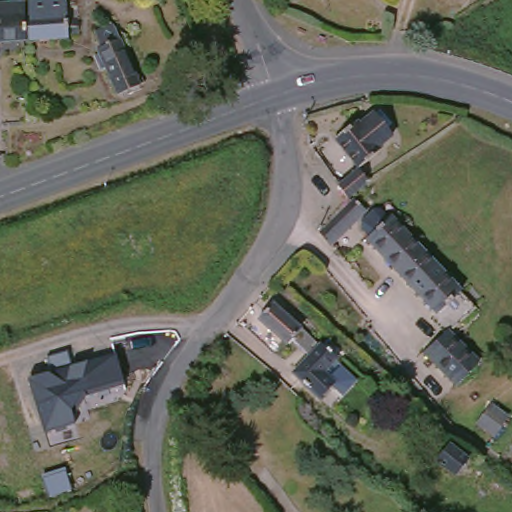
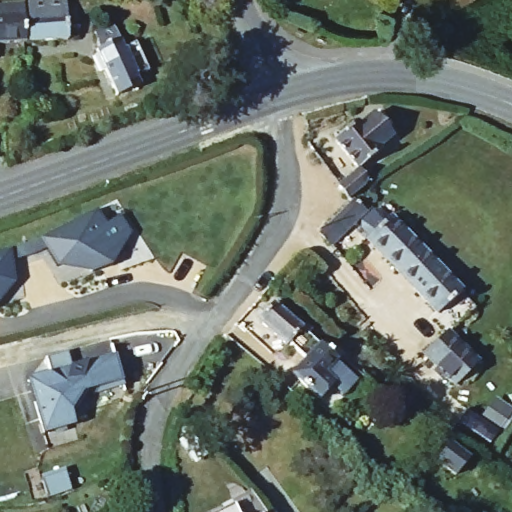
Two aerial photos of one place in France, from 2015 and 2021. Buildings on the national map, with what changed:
unchanged [(17,0),(18,5),(9,5),(9,0),(17,0)]
unchanged [(23,5),(59,5),(59,24),(61,24),(62,30),(72,30),(73,44),(63,44),(63,50),(20,52),(19,26),(23,25),(23,5)]
unchanged [(18,11),(19,26),(20,52),(0,53),(0,12),(18,11)]
unchanged [(108,32),(132,86),(137,84),(140,90),(111,101),(92,57),(89,40),(108,32)]
unchanged [(359,127),(372,116),(391,138),(377,150),(381,155),(358,174),(334,143),(356,124),(359,127)]
unchanged [(327,167),(321,158),(330,149),(338,158),(327,167)]
unchanged [(362,192),(349,203),(339,191),(358,174),(364,181),(362,192)]
unchanged [(361,214),(366,216),(331,251),(319,237),(354,205),(361,214)]
new [(16,247),(42,237),(99,210),(106,222),(121,215),(131,232),(111,263),(97,272),(60,266),(48,248),(18,260),(20,275),(4,305),(0,306),(0,251),(16,247)]
unchanged [(431,323),(359,244),(375,229),(384,221),(420,260),(423,263),(456,300),(431,323)]
unchanged [(314,353),(307,361),(295,349),(288,357),(258,327),(273,311),(314,353)]
unchanged [(472,370),(449,392),(419,362),(443,340),(472,370)]
unchanged [(124,382),(80,395),(71,409),(74,424),(44,432),(29,380),(51,372),(46,359),(68,352),(71,364),(114,351),(124,382)]
unchanged [(340,368),(326,386),(331,391),(316,405),(292,382),(308,366),(321,351),(340,368)]
unchanged [(422,462),(404,447),(416,433),(434,449),(422,462)]
new [(68,473),(74,492),(50,500),(44,480),(68,473)]
new [(234,504),(239,512),(217,512),(234,504)]

